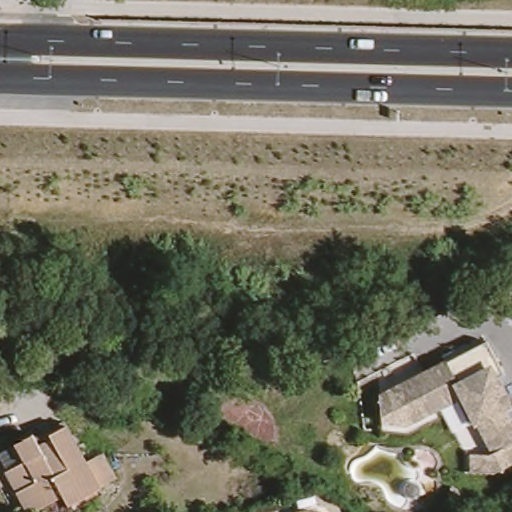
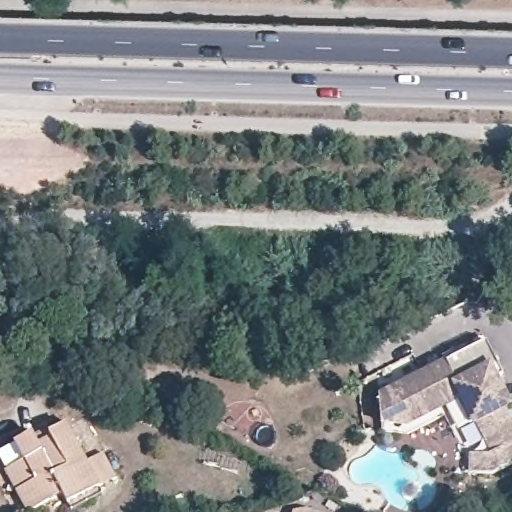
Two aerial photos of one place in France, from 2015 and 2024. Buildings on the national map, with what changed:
unchanged [(382,400),(381,392),(448,357),(451,362),(463,356),(460,351),(489,335),(506,368),(498,372),(511,397),(506,400),(512,412),(512,459),(497,467),(476,467),(477,448),(490,448),(495,446),(478,414),(472,418),(459,393),(413,417),(408,420),(381,419),(382,400)]
unchanged [(0,457),(0,450),(32,433),(34,436),(64,420),(66,425),(100,487),(85,495),(68,503),(64,494),(30,511),(4,463),(0,457)]

